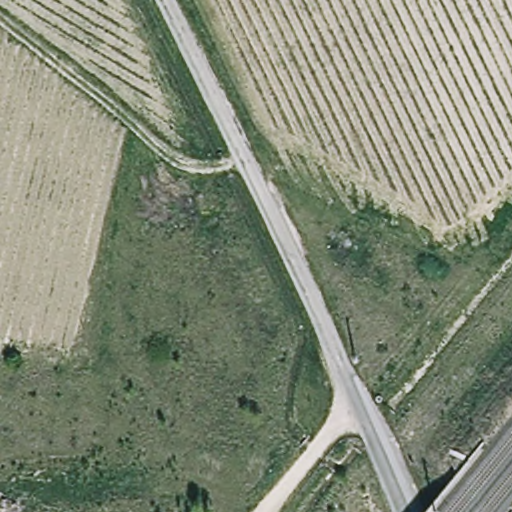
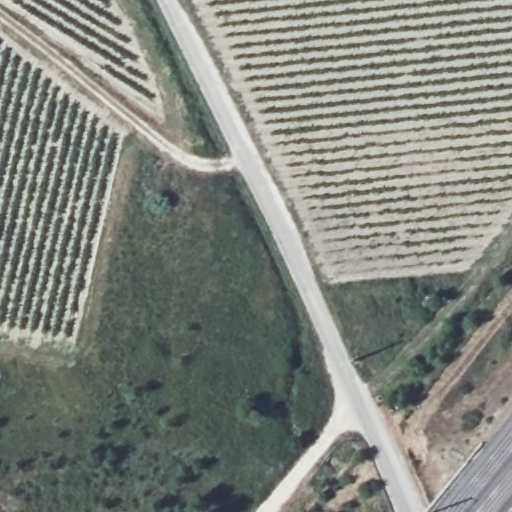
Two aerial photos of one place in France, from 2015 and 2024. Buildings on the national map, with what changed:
unchanged [(370,370),(367,371),(360,352),(373,347),(380,369),(370,370)]

